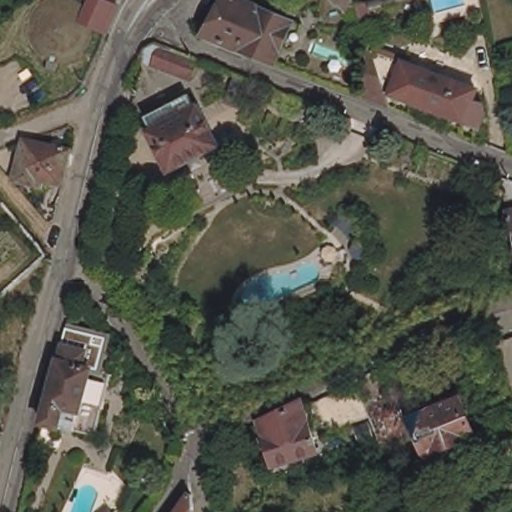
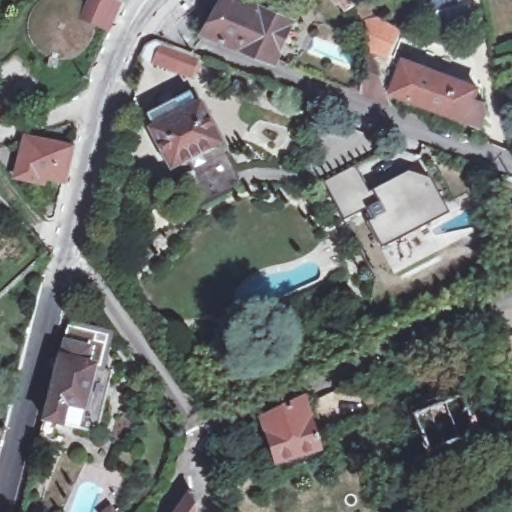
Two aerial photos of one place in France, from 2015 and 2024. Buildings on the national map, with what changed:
unchanged [(287,44),(280,61),(210,32),(228,0),(249,0),(298,20),(287,44)]
unchanged [(354,4),(347,10),(340,0),(353,0),(354,4)]
unchanged [(368,2),(373,20),(361,24),(356,6),(368,2)]
unchanged [(384,89),(389,105),(359,93),(363,45),(369,44),(370,49),(476,90),(472,100),(481,104),(484,114),(480,124),(384,89)]
unchanged [(151,55),(154,50),(158,47),(161,45),(168,47),(209,61),(208,65),(211,66),(206,81),(203,80),(203,83),(146,64),(148,60),(151,55)]
unchanged [(51,61),(61,62),(58,72),(49,70),(51,61)]
unchanged [(298,95),(294,107),(274,101),(279,87),(298,95)]
unchanged [(199,103),(221,145),(169,171),(148,130),(199,103)]
unchanged [(37,176),(36,182),(13,178),(20,141),(72,148),(63,181),(37,176)]
new [(354,165),(369,190),(376,202),(364,209),(344,220),(323,181),(354,165)]
new [(376,202),(369,190),(408,170),(428,176),(448,212),(381,250),(366,221),(369,219),(364,209),(376,202)]
unchanged [(504,180),(512,183),(512,213),(504,180)]
unchanged [(65,405),(60,424),(45,420),(65,342),(88,347),(84,363),(93,365),(83,409),(65,405)]
unchanged [(487,358),(497,383),(486,387),(476,362),(487,358)]
unchanged [(65,405),(83,409),(93,365),(113,371),(97,433),(73,427),(60,424),(65,405)]
unchanged [(458,395),(474,432),(428,453),(411,415),(441,402),(439,398),(445,395),(447,399),(458,395)]
unchanged [(304,396),(321,446),(275,460),(261,416),(304,396)]
unchanged [(394,405),(400,419),(376,430),(365,403),(374,400),(379,410),(394,405)]
unchanged [(0,439),(0,429),(2,431),(0,439)]
unchanged [(200,512),(176,512),(196,486),(198,488),(200,512)]
unchanged [(113,512),(105,512),(109,508),(113,512)]

